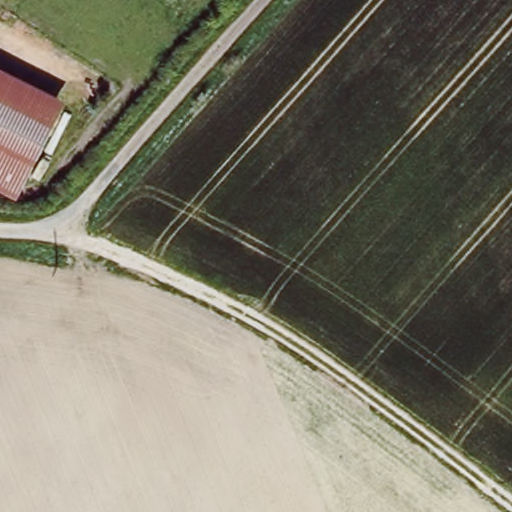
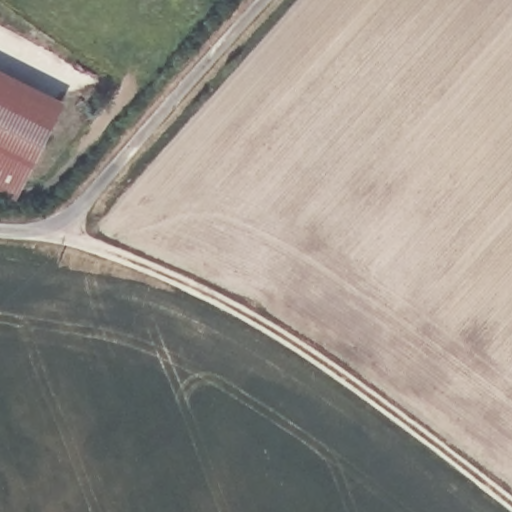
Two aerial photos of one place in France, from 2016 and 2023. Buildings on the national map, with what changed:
unchanged [(12,196),(0,189),(0,75),(62,111),(12,196)]

